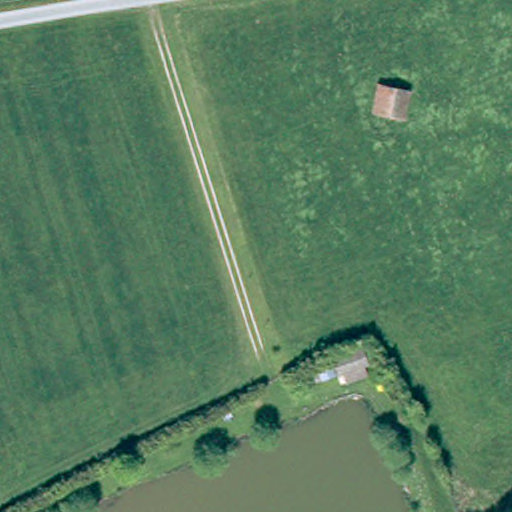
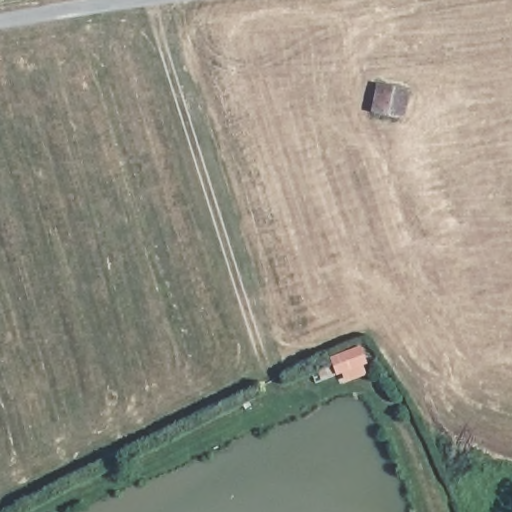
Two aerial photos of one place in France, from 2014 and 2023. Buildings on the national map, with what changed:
unchanged [(381,81),(410,86),(404,114),(376,109),(381,81)]
unchanged [(350,381),(347,371),(337,375),(332,359),(362,347),(368,363),(364,365),(367,374),(350,381)]

